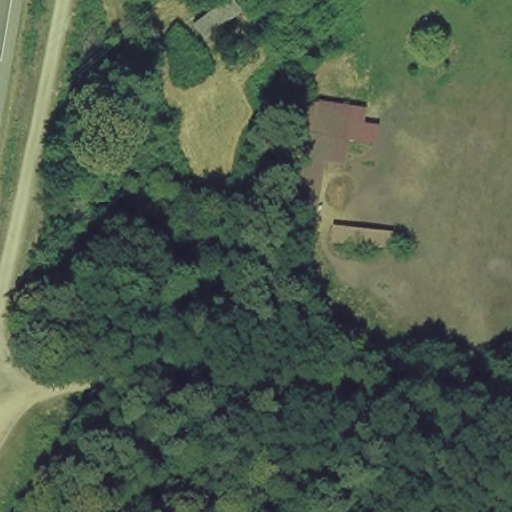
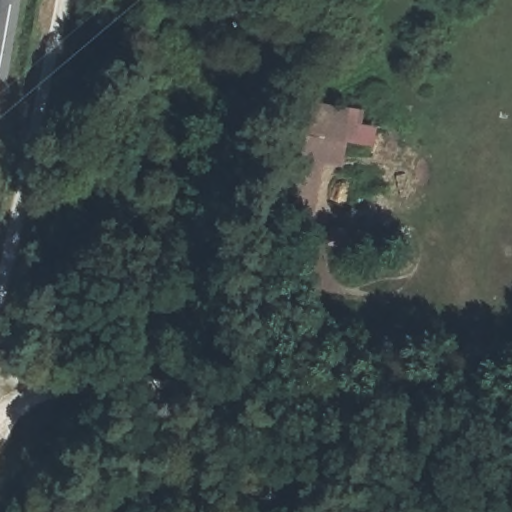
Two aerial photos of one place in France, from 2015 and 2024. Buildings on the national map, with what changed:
unchanged [(202,39),(188,23),(215,0),(231,0),(238,10),(202,39)]
unchanged [(327,139),(297,132),(306,99),(364,107),(361,122),(377,124),(372,140),(346,137),(342,160),(324,156),(327,139)]
unchanged [(324,156),(314,229),(274,219),(289,131),(297,132),(327,139),(324,156)]
unchanged [(388,250),(327,242),(329,222),(391,229),(388,250)]

